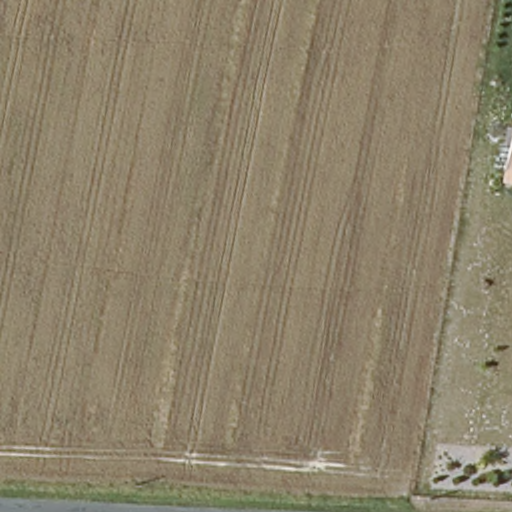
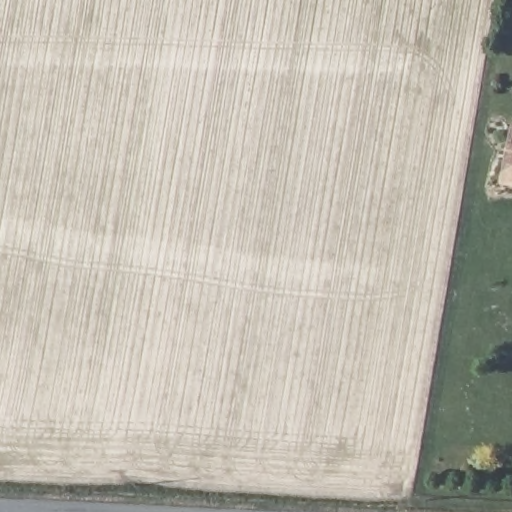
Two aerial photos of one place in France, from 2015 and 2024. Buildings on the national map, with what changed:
unchanged [(501,183),(511,124),(512,124),(512,185),(501,183)]

